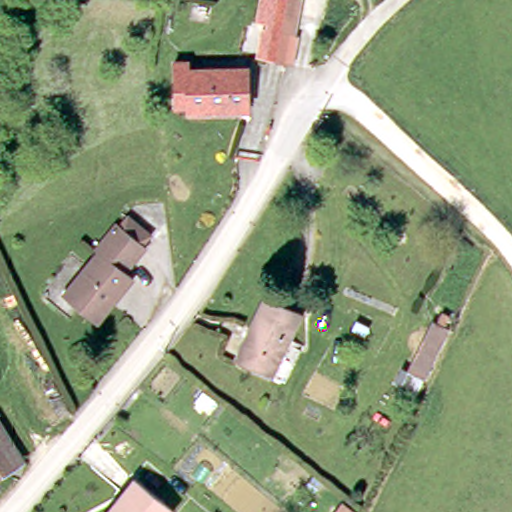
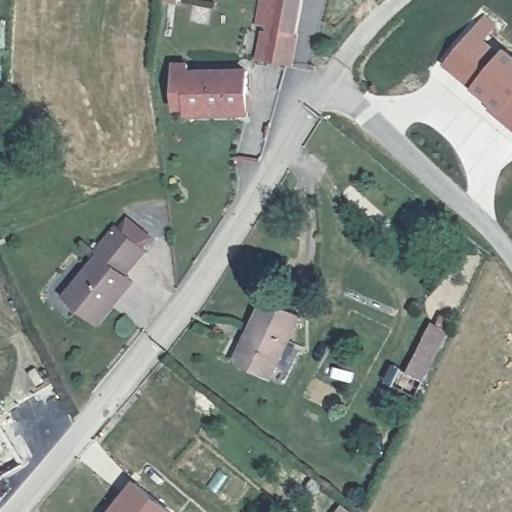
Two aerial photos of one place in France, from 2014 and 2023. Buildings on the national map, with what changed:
unchanged [(286,65),(282,64),(252,55),(258,31),(262,32),(267,14),(268,10),(296,19),(289,40),(295,42),(286,65)]
new [(488,109),(491,105),(443,65),(486,14),(498,24),(486,39),(502,51),(506,47),(512,52),(512,129),(488,109)]
unchanged [(189,113),(188,67),(247,67),(247,107),(214,107),(214,113),(189,113)]
unchanged [(110,306),(94,324),(62,297),(97,255),(93,252),(115,226),(116,228),(125,218),(148,237),(140,247),(143,250),(122,276),(125,278),(129,282),(110,306)]
unchanged [(281,377),(233,356),(261,295),(295,310),(285,334),(290,337),(288,342),(296,346),(281,377)]
demolished [(419,309),(433,316),(410,363),(396,357),(419,309)]
unchanged [(433,324),(447,331),(425,378),(410,372),(433,324)]
unchanged [(0,475),(0,472),(1,474),(0,475)]
unchanged [(175,512),(113,512),(135,482),(175,512)]
unchanged [(329,512),(320,505),(331,490),(347,502),(340,512),(329,512)]

